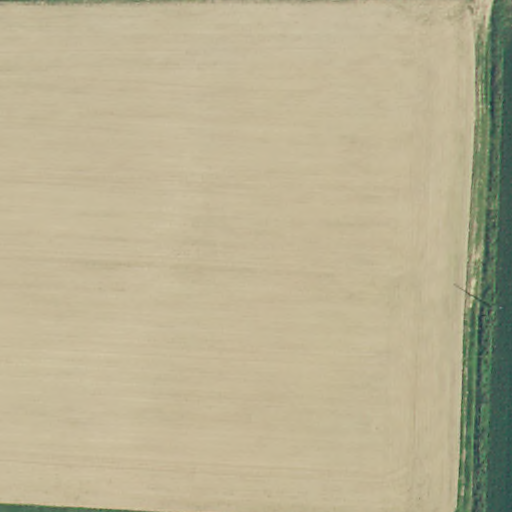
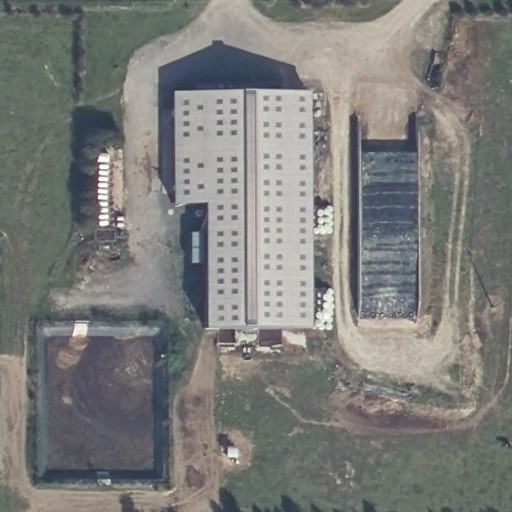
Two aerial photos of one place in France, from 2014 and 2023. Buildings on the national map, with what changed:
new [(200,204),(170,204),(169,94),(306,92),(307,327),(203,328),(200,204)]

